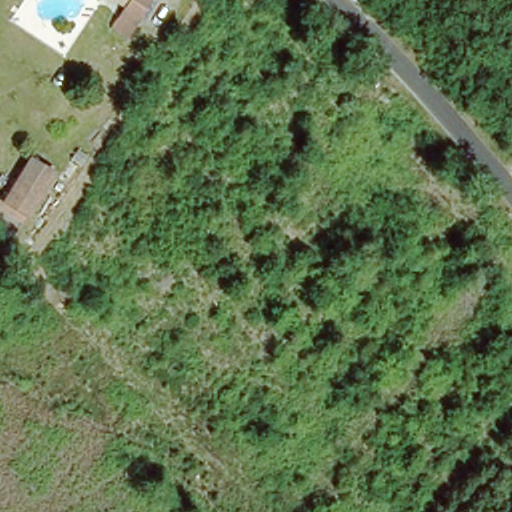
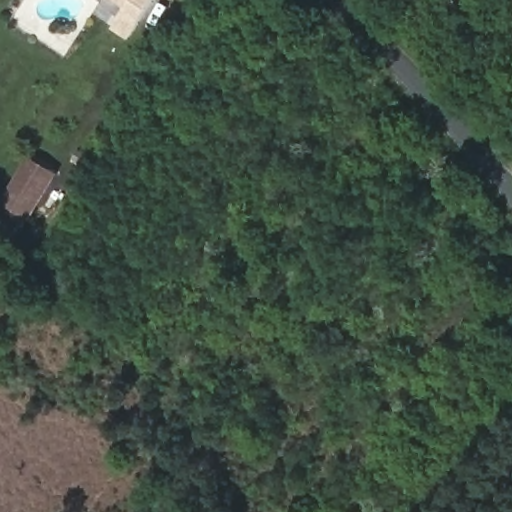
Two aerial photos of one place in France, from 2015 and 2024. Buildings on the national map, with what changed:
unchanged [(133,25),(120,18),(125,9),(111,0),(149,0),(133,25)]
unchanged [(22,223),(0,210),(0,206),(4,200),(30,156),(58,172),(29,217),(22,223)]

